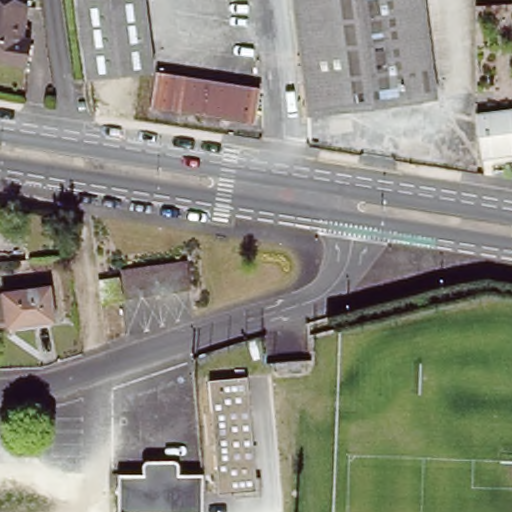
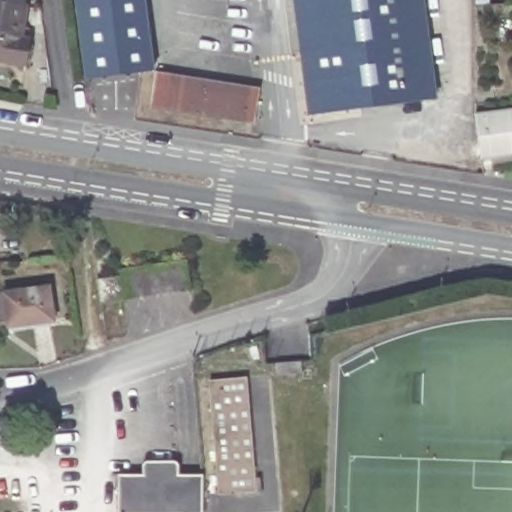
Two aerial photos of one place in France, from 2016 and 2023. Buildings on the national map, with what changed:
unchanged [(83,79),(72,0),(141,0),(151,70),(83,79)]
unchanged [(309,113),(294,0),(420,0),(433,97),(309,113)]
unchanged [(19,38),(29,40),(25,64),(0,59),(0,1),(23,5),(19,38)]
unchanged [(261,90),(255,126),(145,109),(151,71),(261,90)]
unchanged [(512,155),(481,158),(477,113),(512,110),(512,155)]
unchanged [(183,265),(187,291),(123,300),(118,274),(183,265)]
unchanged [(115,281),(117,301),(100,305),(96,284),(115,281)]
unchanged [(52,289),(56,324),(0,329),(0,298),(6,297),(6,294),(52,289)]
unchanged [(247,379),(254,491),(220,494),(212,381),(247,379)]
unchanged [(117,475),(142,474),(142,464),(145,460),(175,459),(178,465),(178,474),(201,474),(201,512),(118,512),(117,475)]

